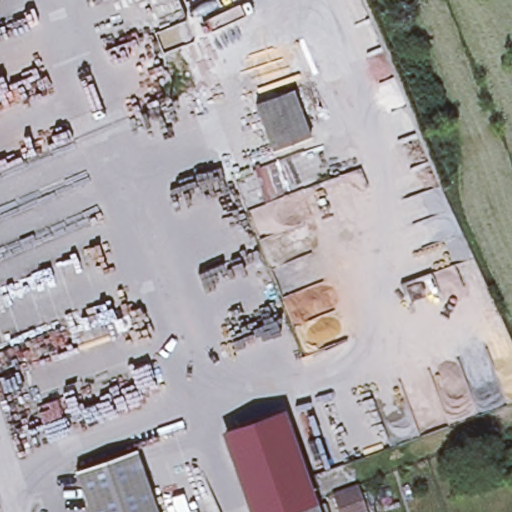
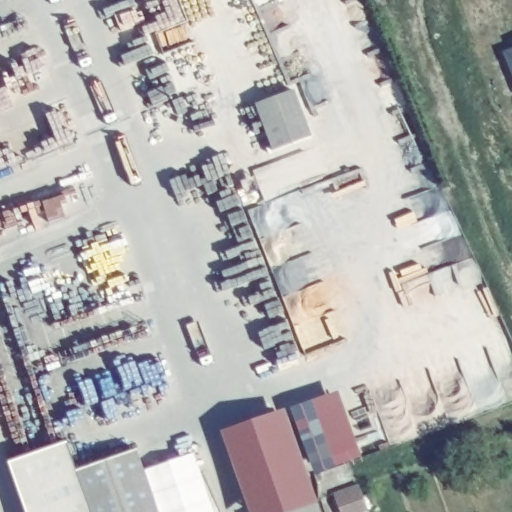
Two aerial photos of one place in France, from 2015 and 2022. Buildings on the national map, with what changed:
unchanged [(254,104),(273,96),(291,90),(309,137),(293,144),(271,151),(254,104)]
new [(291,407),(312,399),(336,465),(315,475),(291,407)]
unchanged [(285,410),(316,500),(321,512),(247,512),(222,435),(285,410)]
new [(10,462),(67,442),(76,468),(91,512),(27,512),(10,462)]
unchanged [(125,450),(135,447),(157,512),(91,512),(76,468),(125,450)]
new [(143,470),(194,453),(214,512),(157,512),(143,470)]
unchanged [(356,475),(357,474),(363,493),(365,500),(340,508),(331,483),(356,475)]

